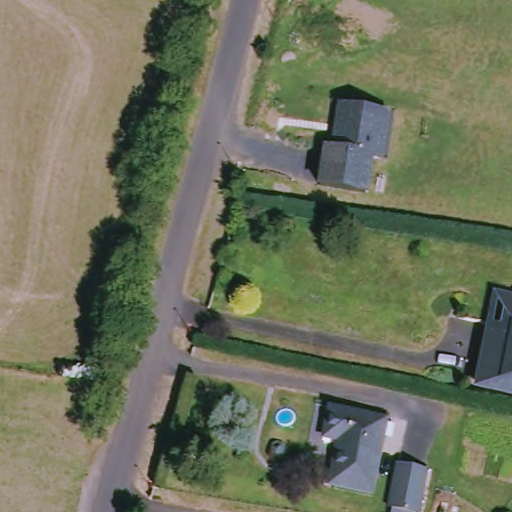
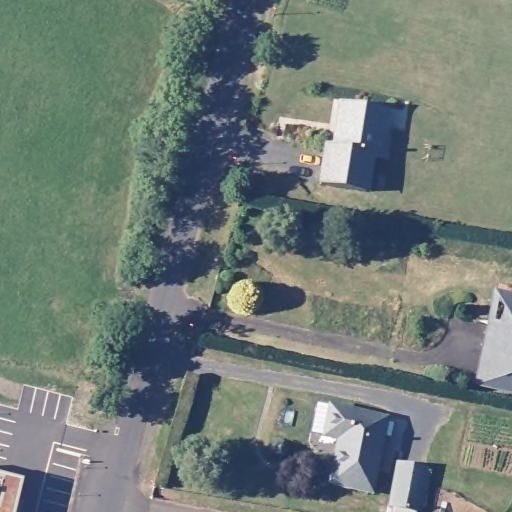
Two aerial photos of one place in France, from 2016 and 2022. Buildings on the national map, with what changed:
unchanged [(373,160),(366,194),(321,186),(327,150),(334,152),(342,107),(370,112),(389,116),(386,132),(381,161),(373,160)]
unchanged [(476,381),(486,320),(497,322),(503,295),(512,297),(512,386),(476,381)]
unchanged [(336,439),(321,436),(326,407),(382,417),(369,490),(328,482),(336,439)]
unchanged [(419,512),(394,512),(396,506),(393,505),(399,460),(429,465),(423,510),(419,510),(419,512)]
new [(13,512),(0,512),(0,470),(22,477),(13,512)]

